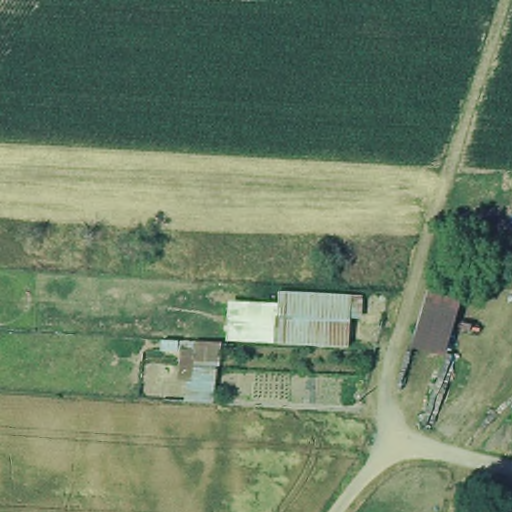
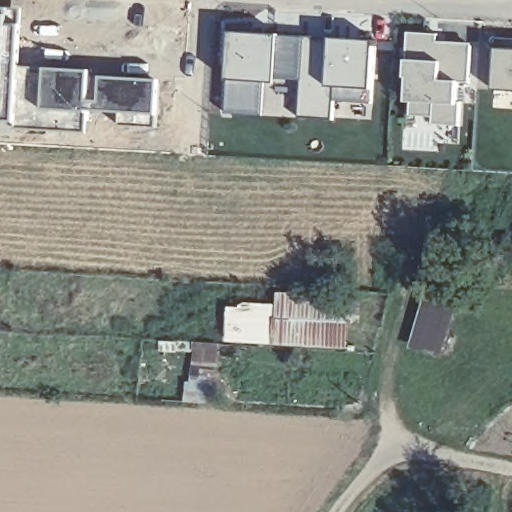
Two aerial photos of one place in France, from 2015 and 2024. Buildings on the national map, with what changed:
new [(0,8),(24,9),(17,124),(0,123),(0,8)]
new [(305,39),(303,82),(277,81),(277,84),(270,84),(271,87),(267,89),(264,117),(227,115),(233,34),(305,39)]
new [(440,35),(439,41),(473,45),(471,87),(462,86),(460,105),(464,105),(464,127),(434,126),(434,118),(408,116),(409,109),(415,107),(415,104),(409,103),(411,80),(408,80),(407,60),(410,56),(410,34),(440,35)]
new [(374,40),(373,89),(339,87),(338,90),(335,91),(332,120),(302,117),(305,39),(374,40)]
new [(495,94),(497,51),(498,39),(512,39),(512,94),(495,94)]
new [(92,101),(101,101),(104,78),(162,82),(161,116),(156,116),(155,127),(119,126),(120,117),(122,117),(122,113),(89,114),(87,132),(19,129),(23,67),(94,70),(92,101)]
unchanged [(435,284),(465,293),(447,358),(414,347),(435,284)]
unchanged [(342,356),(217,347),(217,305),(235,304),(237,292),(344,298),(342,356)]

